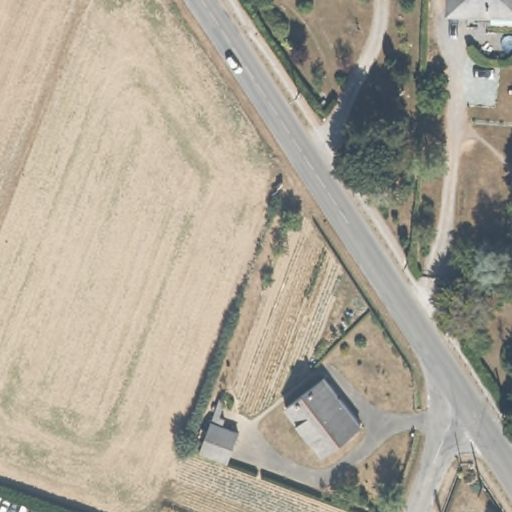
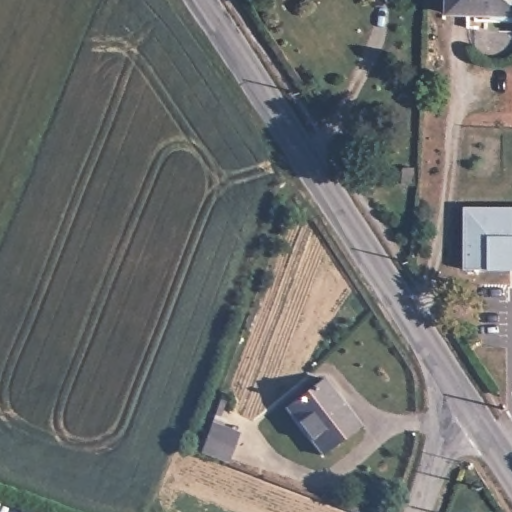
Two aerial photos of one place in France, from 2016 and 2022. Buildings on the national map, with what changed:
unchanged [(512,0),(512,7),(445,6),(445,0),(512,0)]
new [(512,206),(512,270),(464,270),(464,205),(512,206)]
unchanged [(359,419),(324,447),(287,402),(323,374),(359,419)]
unchanged [(200,448),(210,419),(218,424),(233,431),(223,459),(209,451),(200,448)]

